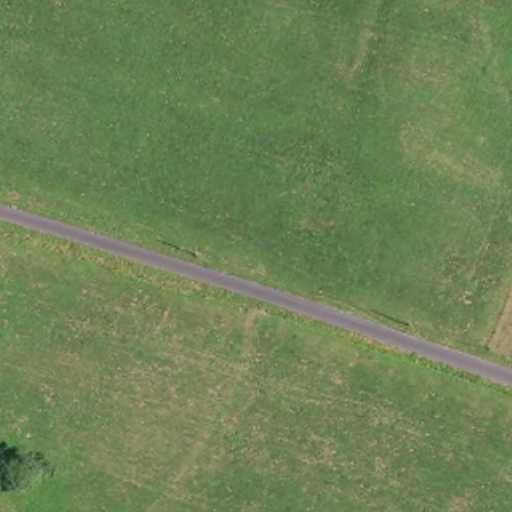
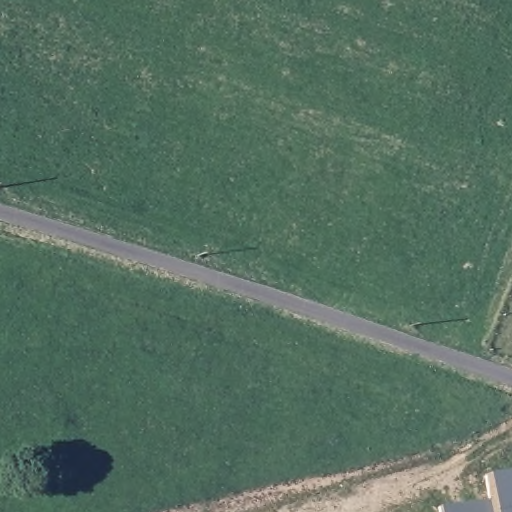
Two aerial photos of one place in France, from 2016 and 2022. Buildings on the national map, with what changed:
new [(437,507),(487,498),(484,476),(512,472),(512,512),(437,512),(437,507)]

